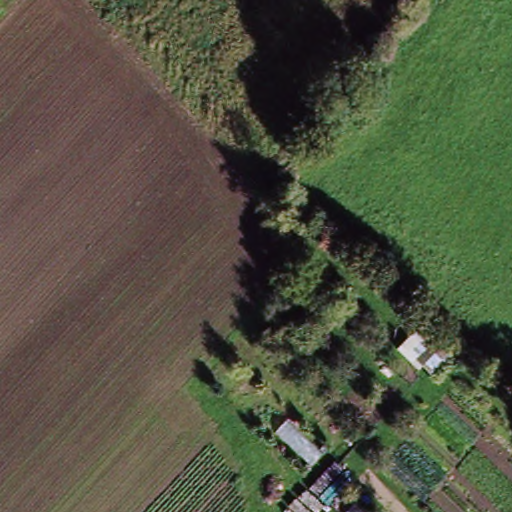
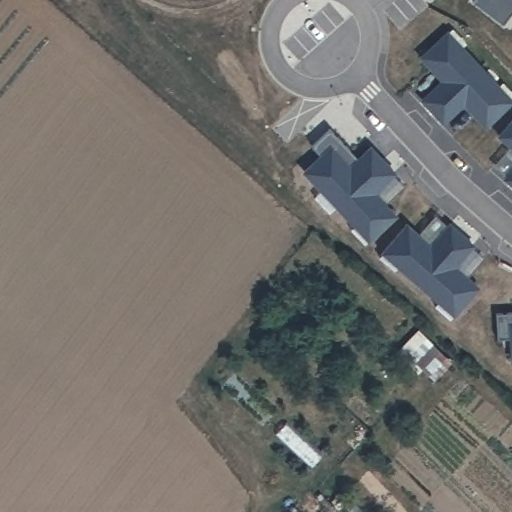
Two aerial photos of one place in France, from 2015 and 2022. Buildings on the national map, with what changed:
new [(503,25),(474,0),(512,0),(512,15),(503,25)]
new [(445,38),(458,53),(461,50),(480,69),(433,112),(422,101),(443,82),(422,59),(445,38)]
new [(480,69),(497,89),(494,92),(508,107),(485,128),(463,104),(443,123),(433,112),(480,69)]
new [(512,126),(512,149),(500,139),(512,126)]
new [(323,154),(315,144),(332,128),(352,150),(344,157),(352,166),(373,147),(385,161),(338,204),(307,169),(323,154)]
new [(385,161),(396,172),(375,191),(396,215),(374,235),(360,220),(357,224),(338,204),(385,161)]
new [(506,181),(512,175),(512,187),(506,181)]
new [(408,224),(432,246),(452,224),(463,234),(420,282),(400,264),(403,261),(388,247),(408,224)]
new [(463,234),(475,245),(456,266),(480,287),(459,310),(444,296),(440,300),(420,282),(463,234)]
new [(512,312),(512,337),(500,338),(499,312),(512,312)]
unchanged [(287,418),(325,451),(311,467),(273,433),(287,418)]
unchanged [(364,512),(348,512),(354,504),(364,512)]

